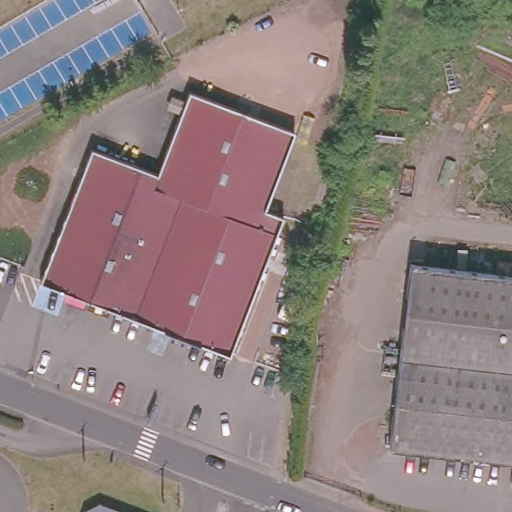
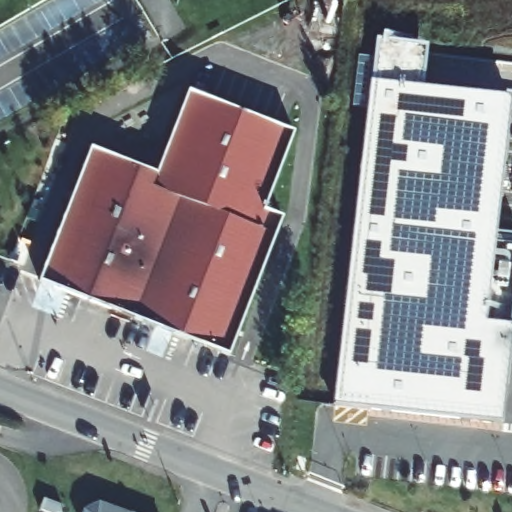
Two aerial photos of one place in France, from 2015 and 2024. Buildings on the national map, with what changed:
new [(411,87),(509,95),(497,234),(512,235),(512,336),(505,403),(483,421),(336,407),(377,37),(417,41),(411,87)]
unchanged [(291,131),(262,209),(284,217),(231,356),(43,282),(93,150),(159,173),(190,92),(291,131)]
demolished [(508,463),(385,447),(409,262),(512,274),(512,482),(506,481),(508,463)]
unchanged [(88,511),(102,505),(117,512),(88,512),(88,511)]

